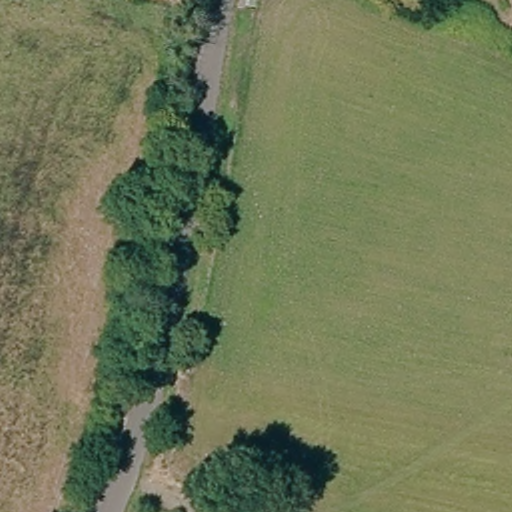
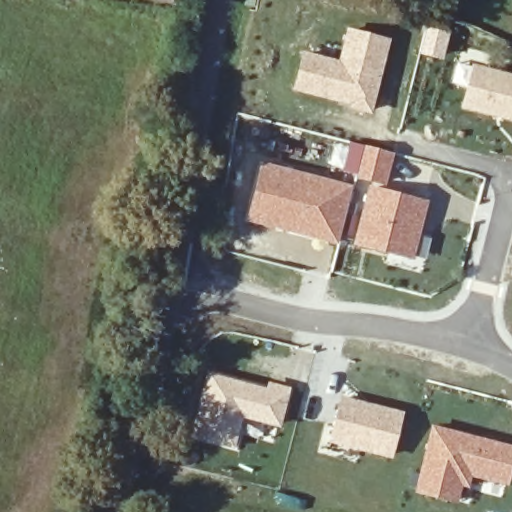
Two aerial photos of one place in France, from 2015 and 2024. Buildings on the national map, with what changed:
unchanged [(151,0),(179,0),(177,9),(151,0)]
new [(423,24),(450,31),(443,60),(416,54),(423,24)]
new [(300,50),(336,59),(345,26),(391,39),(370,116),(290,91),(300,50)]
new [(472,66),(473,62),(512,73),(512,123),(460,108),(466,87),(451,82),(457,62),(472,66)]
new [(347,141),(394,152),(384,187),(369,182),(339,169),(347,141)]
new [(260,161),(353,186),(337,246),(244,222),(260,161)]
new [(369,182),(384,187),(428,201),(420,236),(431,239),(425,259),(414,256),(412,260),(352,245),(369,182)]
new [(208,371),(265,387),(267,381),(291,387),(279,428),(243,418),(234,451),(187,436),(208,371)]
new [(341,396),(404,412),(392,460),(328,443),(341,396)]
new [(512,445),(512,469),(507,487),(472,479),(468,490),(463,489),(458,505),(412,493),(430,423),(512,445)]

